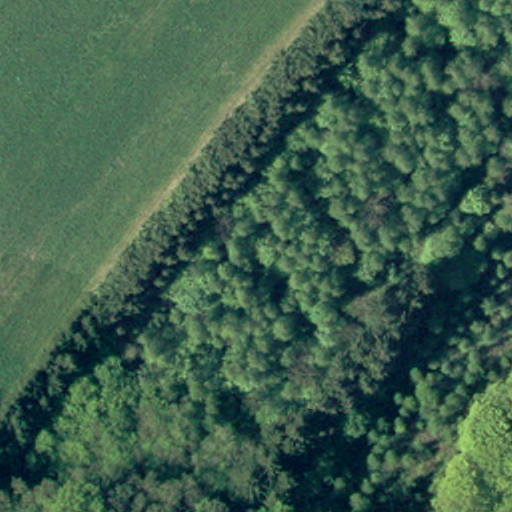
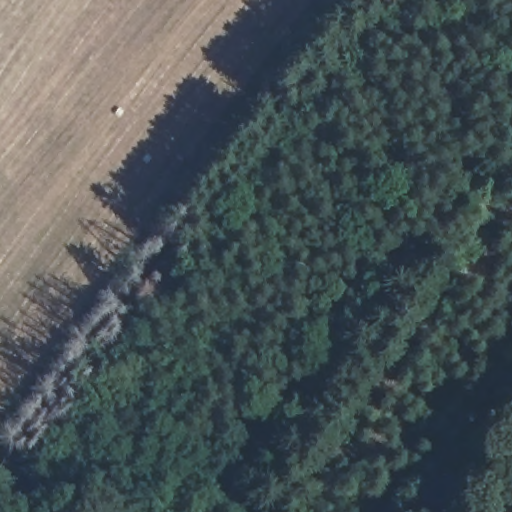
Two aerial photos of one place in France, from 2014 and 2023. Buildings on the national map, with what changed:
unchanged [(80,420),(92,429),(77,451),(64,442),(80,420)]

